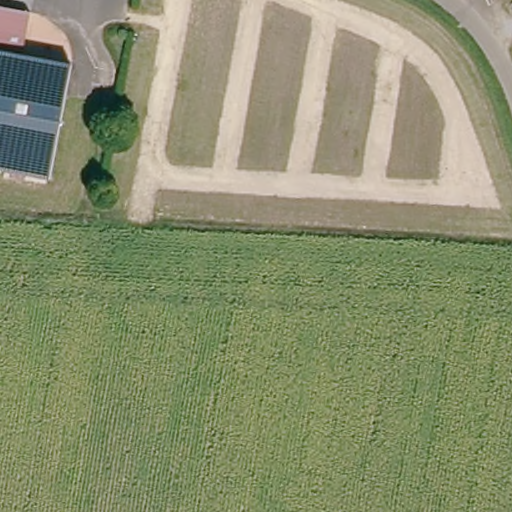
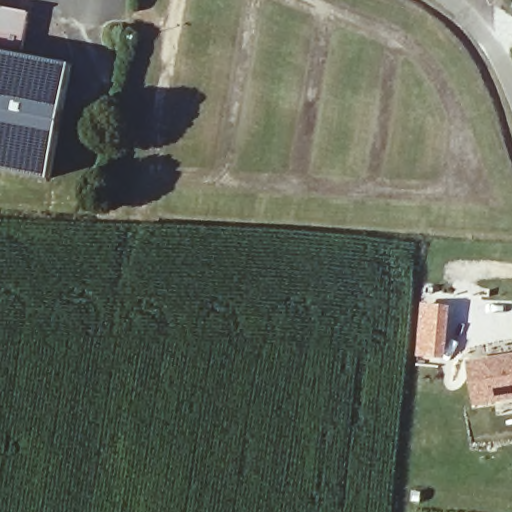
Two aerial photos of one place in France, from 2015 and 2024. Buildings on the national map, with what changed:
unchanged [(51,182),(0,171),(0,7),(11,9),(39,16),(38,26),(30,60),(76,69),(51,182)]
new [(428,351),(420,351),(424,303),(452,306),(447,360),(427,357),(428,351)]
new [(475,406),(468,362),(512,355),(512,400),(475,406)]

